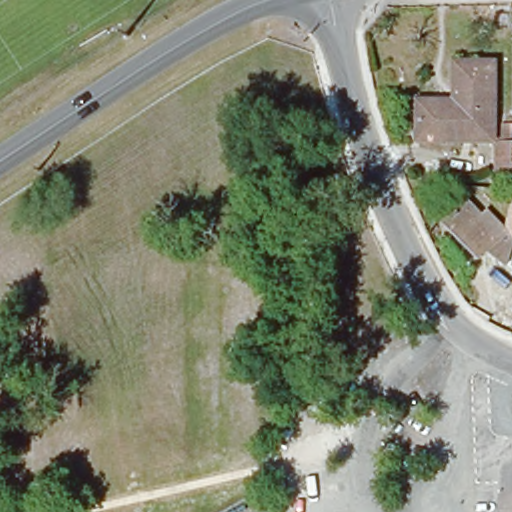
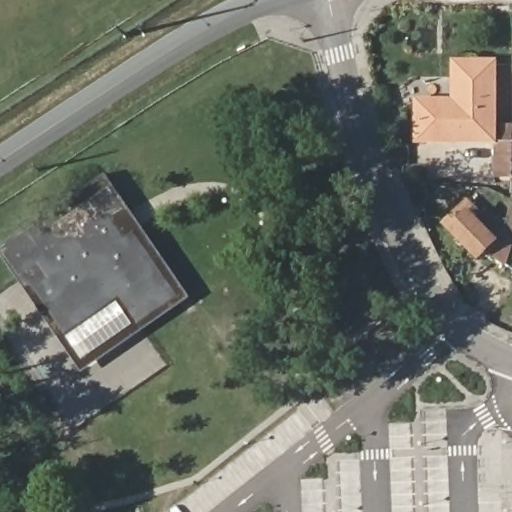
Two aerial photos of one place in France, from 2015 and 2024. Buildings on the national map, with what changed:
unchanged [(488,134),(418,131),(420,91),(453,92),(456,55),(495,58),(488,134)]
unchanged [(511,176),(512,172),(491,171),(492,139),(512,140),(512,176),(511,176)]
new [(0,252),(0,248),(107,175),(189,297),(84,374),(0,252)]
unchanged [(511,251),(496,238),(486,250),(452,216),(465,203),(499,234),(512,219),(512,250),(511,251)]

